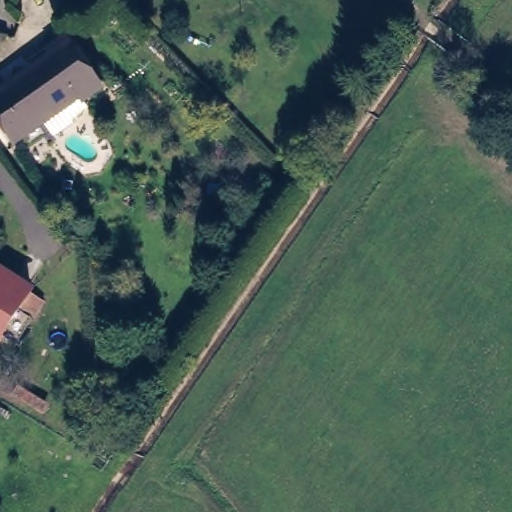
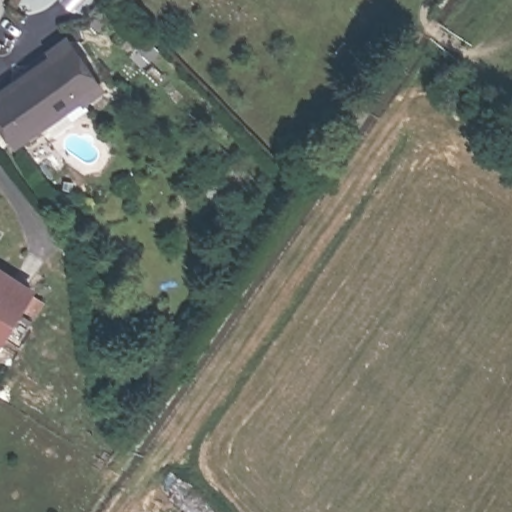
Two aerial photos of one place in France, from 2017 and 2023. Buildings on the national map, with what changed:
unchanged [(73,41),(105,82),(90,93),(4,159),(0,154),(0,98),(59,52),(73,41)]
unchanged [(0,344),(0,270),(33,290),(1,344),(0,344)]

